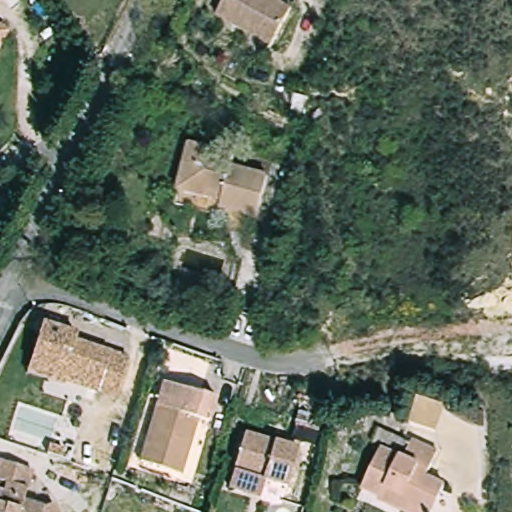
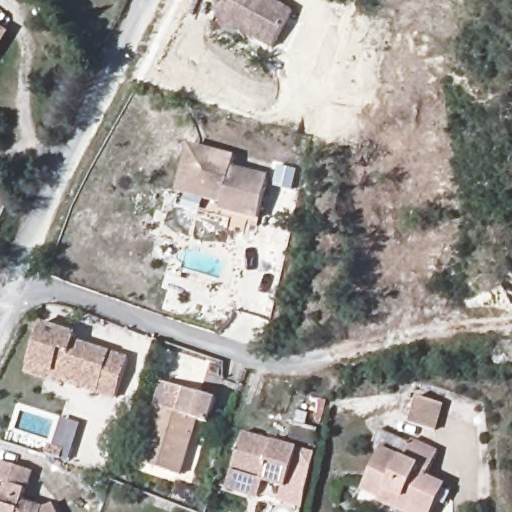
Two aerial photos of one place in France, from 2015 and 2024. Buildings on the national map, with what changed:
unchanged [(278,0),(297,13),(270,51),(216,15),(226,0),(278,0)]
unchanged [(11,29),(0,49),(0,22),(11,29)]
unchanged [(230,186),(210,178),(205,189),(184,180),(200,139),(241,156),(236,168),(271,182),(254,223),(220,209),(230,186)]
unchanged [(218,216),(177,199),(184,180),(205,189),(210,178),(230,186),(220,209),(218,216)]
unchanged [(34,373),(37,364),(48,324),(83,334),(81,340),(134,354),(123,394),(70,380),(69,383),(34,373)]
unchanged [(405,421),(415,391),(449,404),(436,433),(405,421)]
unchanged [(216,401),(209,424),(198,421),(181,476),(141,465),(158,409),(181,415),(188,392),(216,401)]
unchanged [(386,448),(396,432),(442,450),(432,473),(450,482),(436,512),(405,512),(364,493),(386,448)]
unchanged [(297,452),(286,493),(234,479),(245,438),(297,452)]
unchanged [(23,508),(30,509),(37,512),(0,512),(0,507),(2,508),(6,496),(1,494),(3,486),(0,485),(0,469),(4,458),(35,467),(23,508)]
unchanged [(127,479),(193,504),(190,512),(113,512),(127,479)]

